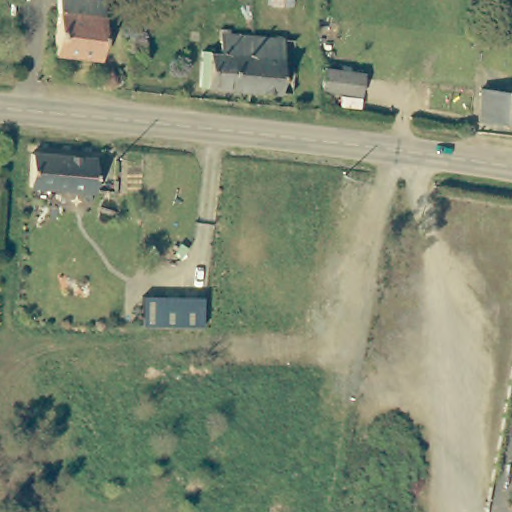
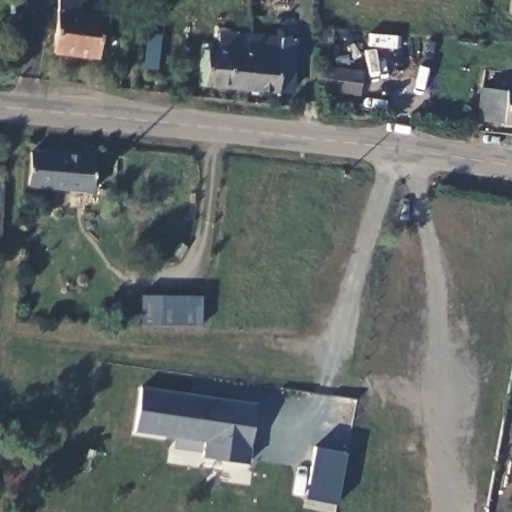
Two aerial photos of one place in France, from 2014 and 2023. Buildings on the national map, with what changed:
unchanged [(45,54),(50,0),(73,0),(96,2),(90,59),(45,54)]
unchanged [(509,0),(512,0),(512,19),(507,18),(509,0)]
unchanged [(196,63),(202,64),(203,48),(212,49),(215,31),(247,34),(245,88),(193,84),(196,63)]
unchanged [(288,36),(285,91),(245,88),(247,34),(288,36)]
unchanged [(360,84),(319,80),(321,57),(362,63),(360,84)]
unchanged [(108,72),(110,67),(117,63),(124,66),(120,78),(108,72)]
unchanged [(477,91),(480,72),(512,75),(512,128),(474,124),(477,91)]
unchanged [(30,150),(92,156),(88,192),(26,185),(30,150)]
unchanged [(205,304),(201,333),(141,324),(146,294),(205,304)]
new [(256,404),(247,464),(202,459),(204,441),(134,432),(141,387),(256,404)]
new [(337,504),(304,498),(314,448),(347,453),(337,504)]

